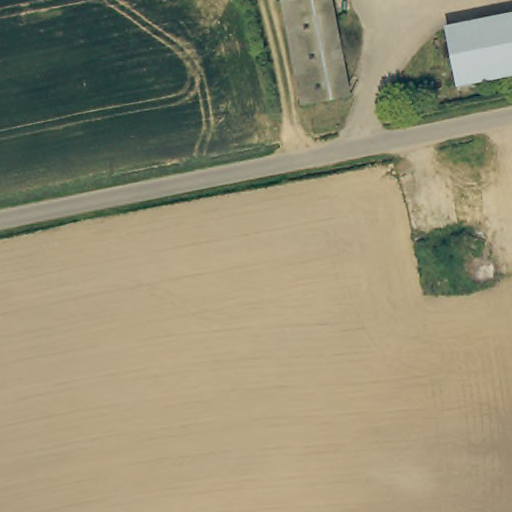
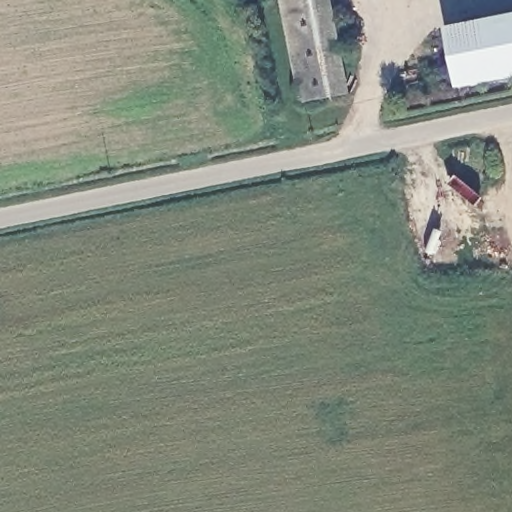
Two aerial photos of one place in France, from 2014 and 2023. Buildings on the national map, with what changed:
unchanged [(352,94),(305,103),(286,0),(336,0),(352,94)]
unchanged [(446,29),(512,16),(512,76),(457,87),(446,29)]

